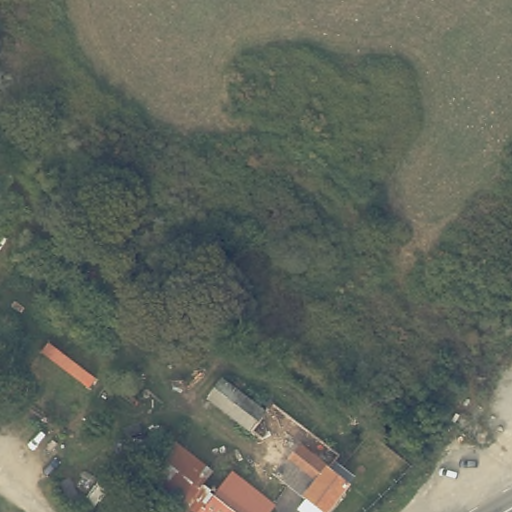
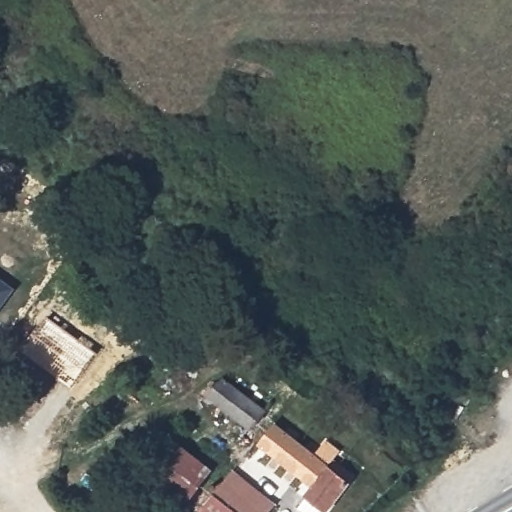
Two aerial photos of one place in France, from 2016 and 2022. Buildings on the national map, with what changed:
new [(0,309),(0,278),(15,289),(0,309)]
unchanged [(272,399),(341,452),(335,460),(355,475),(326,511),(325,509),(322,512),(304,512),(298,507),(307,496),(277,472),(288,458),(273,447),(275,446),(209,395),(223,376),(265,408),(272,399)]
unchanged [(211,465),(194,488),(207,498),(199,509),(149,471),(174,437),(211,465)]
unchanged [(265,512),(242,512),(214,490),(230,467),(273,500),(265,512)]
unchanged [(242,512),(203,512),(199,509),(207,498),(214,490),(242,512)]

